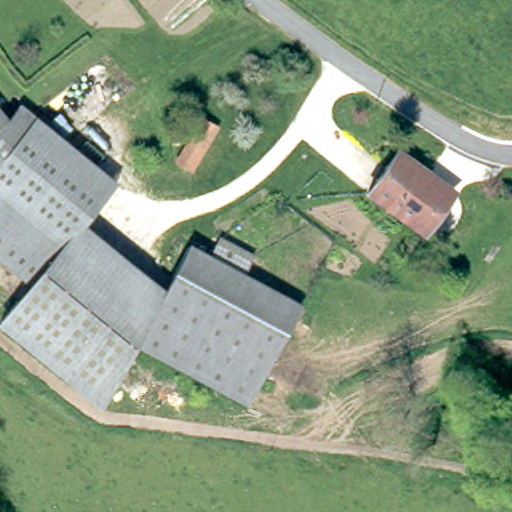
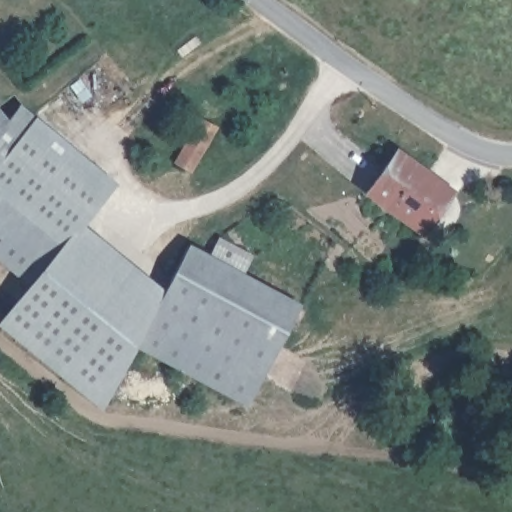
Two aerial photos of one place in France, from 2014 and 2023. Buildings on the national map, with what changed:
unchanged [(115,180),(82,221),(65,244),(0,191),(0,124),(5,120),(25,105),(115,180)]
unchanged [(0,124),(0,114),(5,120),(0,124)]
unchanged [(415,226),(368,189),(400,149),(430,169),(427,176),(451,195),(438,212),(437,211),(421,231),(415,226)]
unchanged [(33,284),(0,258),(0,191),(65,244),(33,284)]
unchanged [(137,342),(106,411),(1,325),(19,302),(33,284),(65,244),(82,221),(164,290),(150,316),(137,342)]
unchanged [(218,235),(254,254),(244,272),(299,301),(248,401),(137,342),(150,316),(164,290),(188,243),(208,254),(218,235)]

